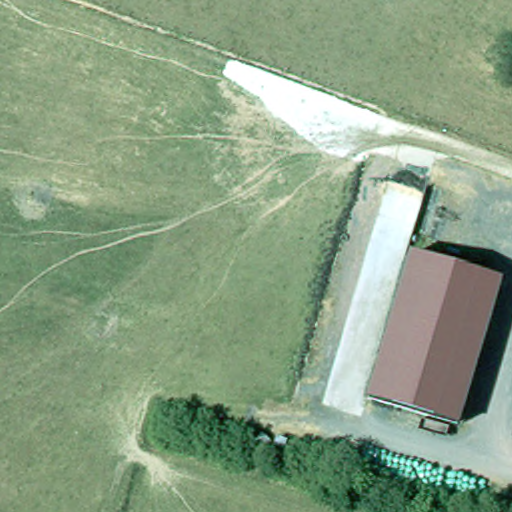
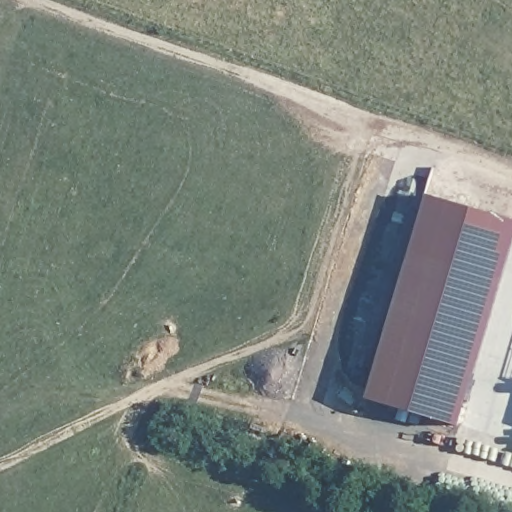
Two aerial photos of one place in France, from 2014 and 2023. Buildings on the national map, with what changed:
new [(477,276),(408,255),(427,195),(512,221),(512,243),(497,282),(477,276)]
unchanged [(364,399),(408,255),(477,276),(432,420),(364,399)]
unchanged [(497,282),(453,426),(432,420),(477,276),(497,282)]

